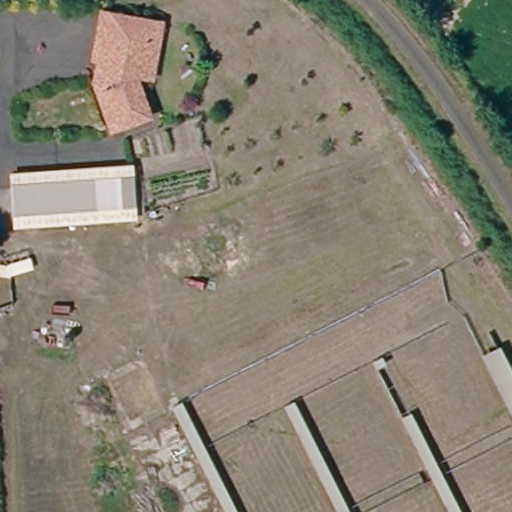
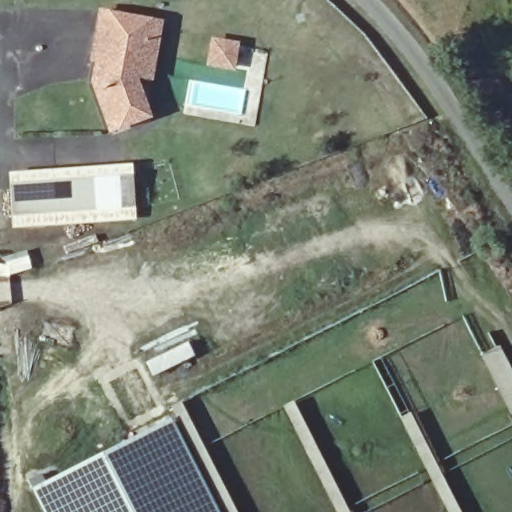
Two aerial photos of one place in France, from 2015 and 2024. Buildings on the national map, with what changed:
unchanged [(172,24),(162,84),(148,82),(161,122),(120,138),(98,85),(102,66),(98,65),(108,12),(172,24)]
unchanged [(135,164),(137,220),(13,227),(10,172),(135,164)]
new [(189,342),(196,356),(154,378),(147,364),(189,342)]
new [(512,368),(512,417),(481,354),(500,344),(512,368)]
new [(181,403),(237,512),(219,512),(182,440),(166,412),(181,403)]
new [(123,439),(166,412),(182,440),(219,512),(42,512),(29,486),(123,439)]

